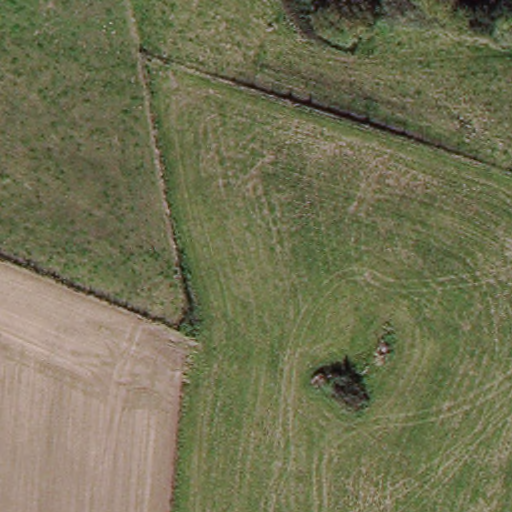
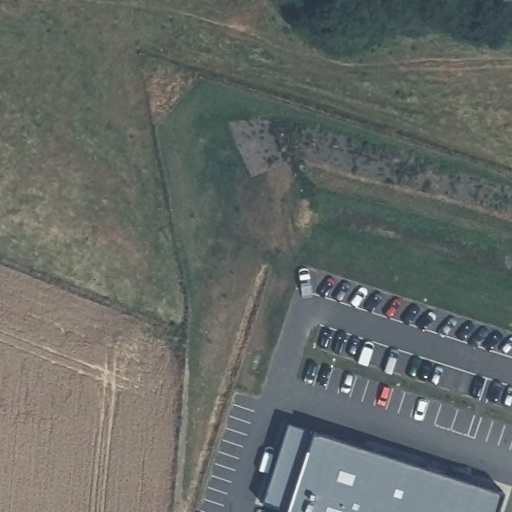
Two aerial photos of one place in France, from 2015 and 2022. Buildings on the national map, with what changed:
new [(312,432),(502,492),(495,512),(285,512),(286,508),(264,500),(288,424),(312,432)]

